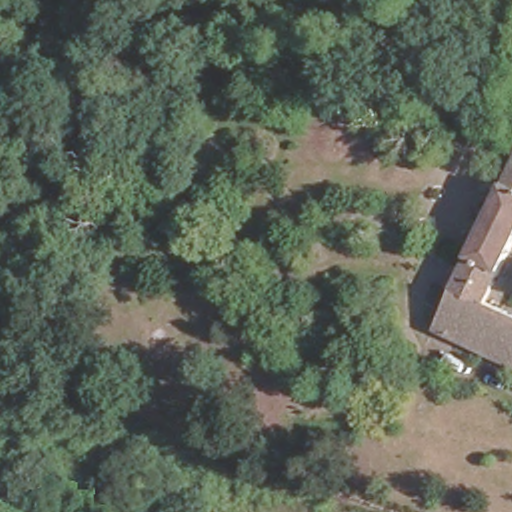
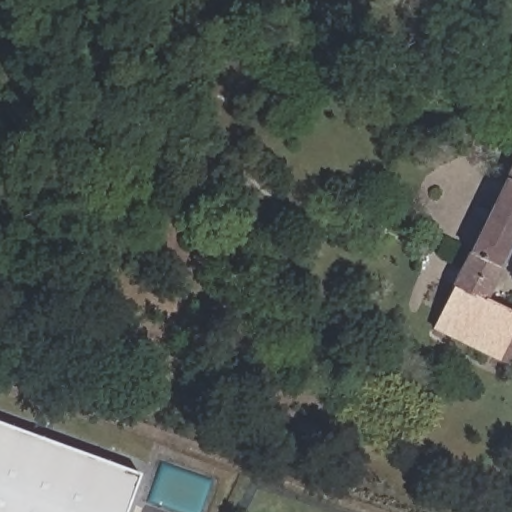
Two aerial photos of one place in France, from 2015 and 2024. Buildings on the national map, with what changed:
unchanged [(452,291),(450,290),(470,252),(470,253),(505,183),(503,182),(512,166),(512,248),(483,306),(512,320),(512,371),(431,332),(452,291)]
new [(128,512),(0,512),(0,424),(141,475),(128,512)]

